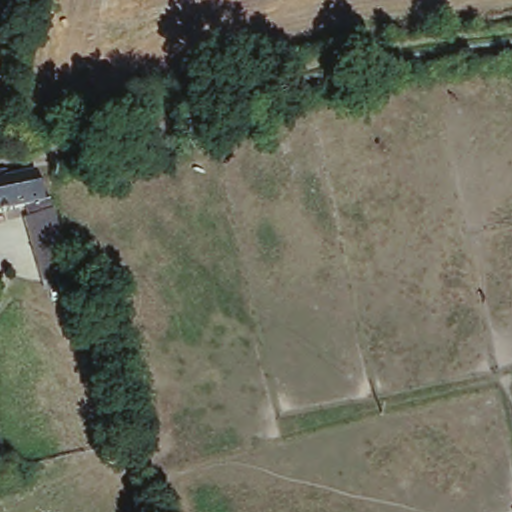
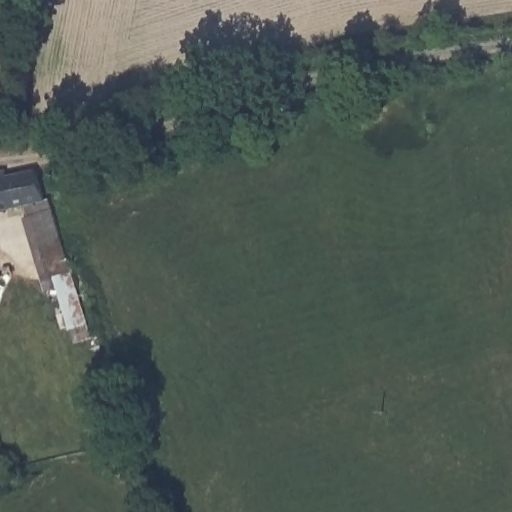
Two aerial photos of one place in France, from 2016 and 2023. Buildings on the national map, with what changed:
unchanged [(4,79),(0,97),(0,78),(4,79)]
unchanged [(58,284),(53,270),(40,234),(35,229),(29,210),(0,216),(0,174),(9,174),(13,185),(39,176),(71,263),(75,277),(58,284)]

